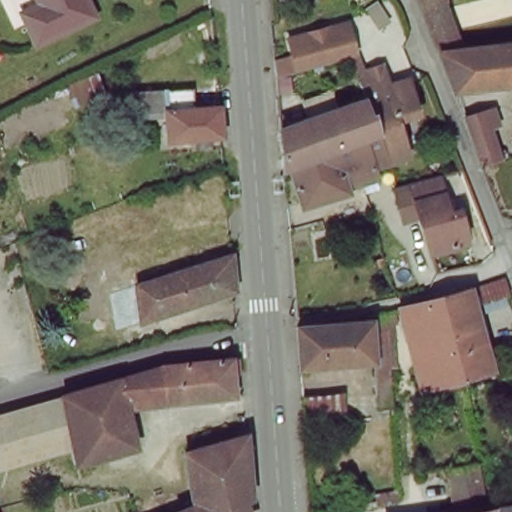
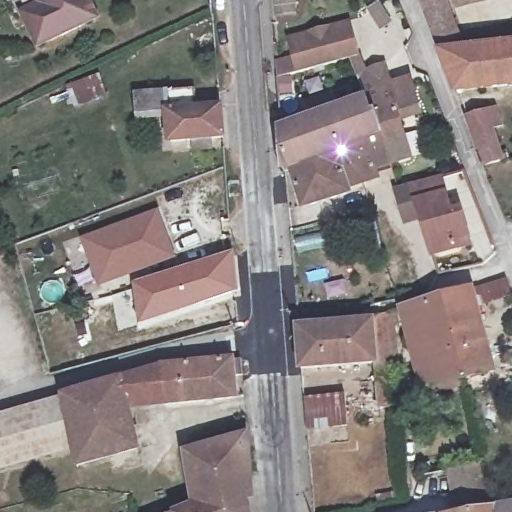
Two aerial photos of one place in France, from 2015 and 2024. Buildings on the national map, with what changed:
unchanged [(92,23),(35,49),(21,19),(39,11),(37,7),(40,0),(39,0),(81,0),(92,23)]
unchanged [(442,50),(417,0),(451,0),(467,49),(442,50)]
unchanged [(402,126),(412,158),(397,163),(392,165),(382,138),(370,109),(368,102),(350,59),(340,62),(278,78),(277,63),(298,59),(296,51),(294,39),(338,27),(353,23),(355,35),(356,39),(357,42),(357,44),(360,56),(365,72),(385,65),(392,85),(412,79),(421,111),(424,118),(402,126)]
unchanged [(467,49),(490,48),(512,46),(512,87),(484,90),(457,91),(442,50),(467,49)]
unchanged [(100,100),(67,112),(58,86),(92,74),(100,100)]
unchanged [(217,137),(168,139),(166,112),(135,112),(135,93),(191,89),(192,107),(215,106),(217,137)]
unchanged [(369,173),(345,182),(349,190),(300,209),(288,171),(284,173),(281,132),(368,102),(370,109),(382,138),(392,165),(369,173)]
unchanged [(490,118),(505,157),(485,163),(469,121),(490,118)]
unchanged [(450,249),(428,256),(407,183),(408,183),(419,180),(439,175),(450,215),(455,214),(462,240),(464,246),(450,249)]
new [(157,220),(174,264),(102,292),(85,248),(157,220)]
unchanged [(230,292),(147,319),(139,288),(228,258),(230,292)]
unchanged [(437,301),(441,300),(470,292),(490,373),(462,378),(420,387),(400,310),(437,301)]
unchanged [(372,317),(372,314),(391,309),(399,413),(363,419),(360,389),(382,386),(379,356),(305,365),(302,325),(372,317)]
unchanged [(123,380),(146,374),(197,368),(232,363),(233,397),(198,400),(131,407),(142,445),(112,456),(84,464),(79,446),(64,398),(123,380)]
unchanged [(343,396),(347,425),(304,431),(302,401),(343,396)]
unchanged [(0,470),(0,417),(64,398),(79,446),(0,470)]
unchanged [(240,485),(247,512),(174,512),(202,502),(187,453),(247,433),(251,476),(240,485)]
unchanged [(484,465),(494,509),(477,512),(460,512),(452,472),(484,465)]

